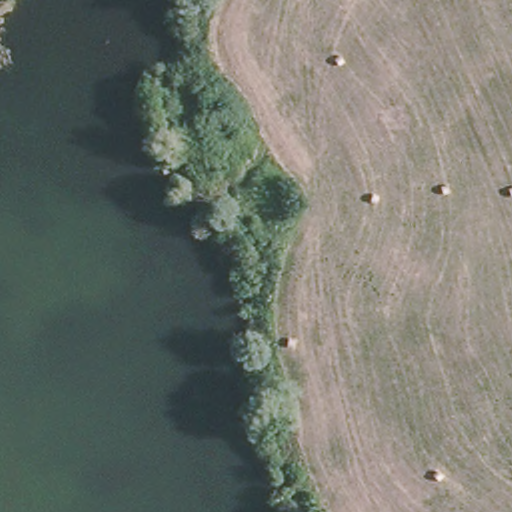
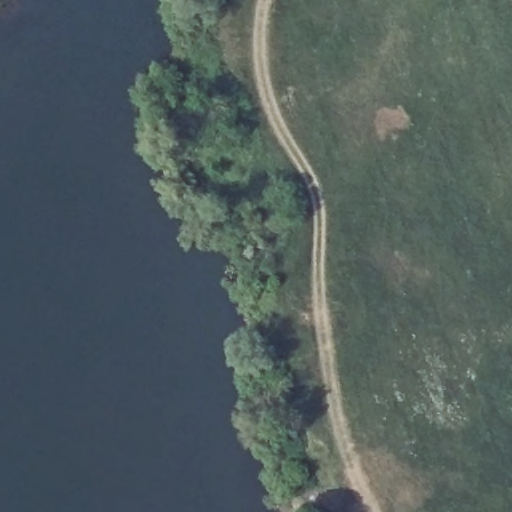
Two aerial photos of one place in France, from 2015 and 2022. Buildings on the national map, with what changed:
[]

